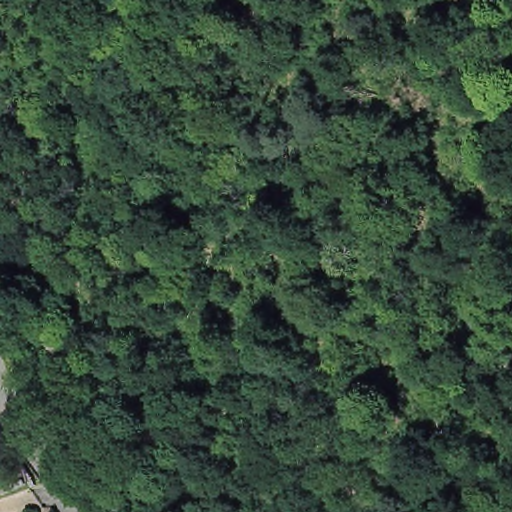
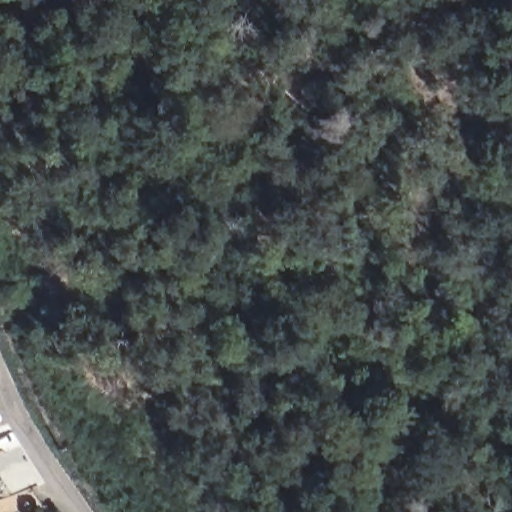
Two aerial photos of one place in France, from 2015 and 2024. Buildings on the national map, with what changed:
unchanged [(62,322),(76,349),(62,356),(48,329),(62,322)]

